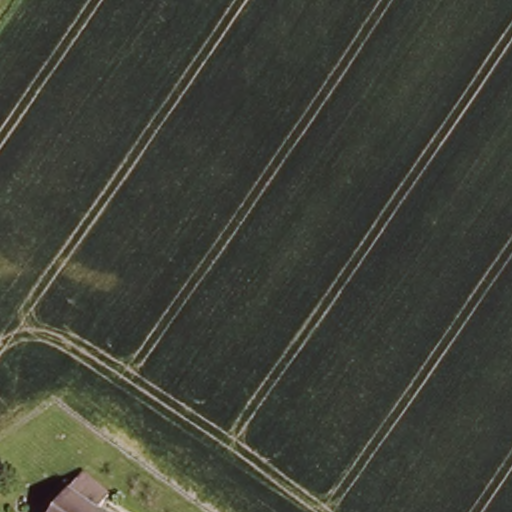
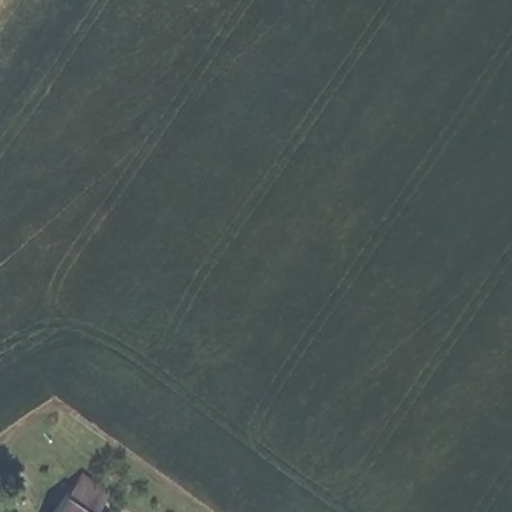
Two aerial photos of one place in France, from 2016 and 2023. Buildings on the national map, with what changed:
unchanged [(79,479),(110,498),(100,512),(57,512),(79,479)]

